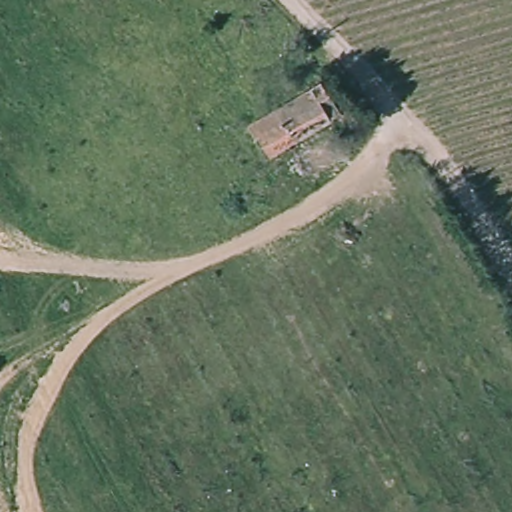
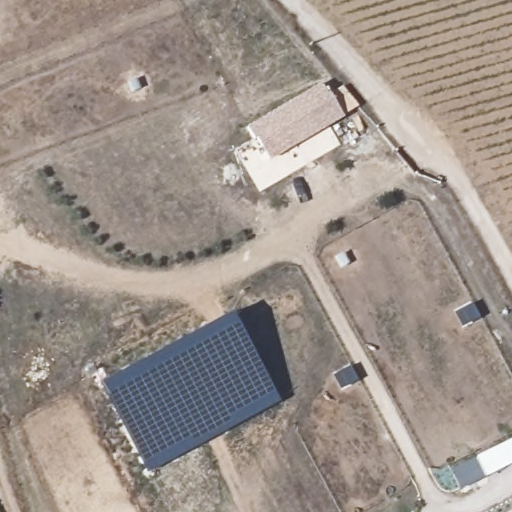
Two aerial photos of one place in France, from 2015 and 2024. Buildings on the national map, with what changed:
new [(326,100),(317,89),(298,99),(305,112),(290,120),(282,108),(256,124),(262,135),(267,134),(280,153),(270,159),(256,136),(254,138),(246,126),(321,81),(328,92),(331,90),(334,95),(326,100)]
unchanged [(345,116),(280,153),(267,134),(262,135),(256,124),(282,108),(290,120),(305,112),(298,99),(317,89),(326,100),(334,95),(345,116)]
new [(281,400),(147,473),(99,383),(231,311),(281,400)]
new [(512,463),(460,490),(451,470),(512,439),(512,463)]

